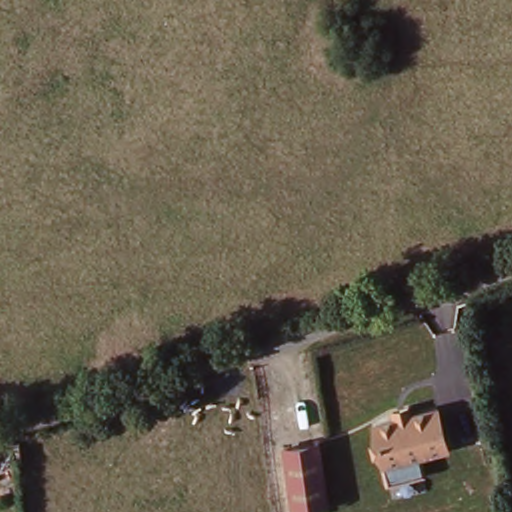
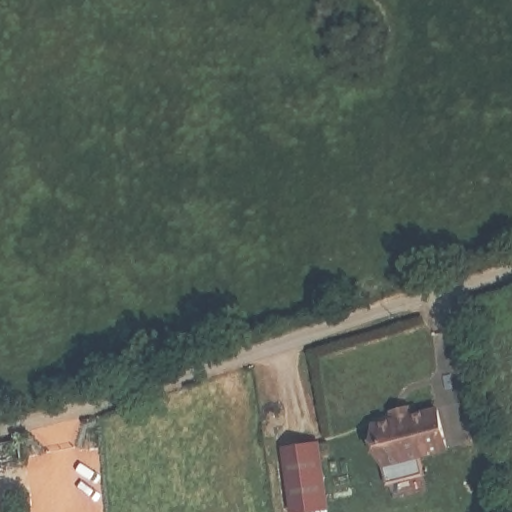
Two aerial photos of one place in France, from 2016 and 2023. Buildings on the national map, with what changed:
unchanged [(437,406),(452,443),(386,465),(370,426),(437,406)]
unchanged [(304,512),(291,512),(282,449),(321,441),(330,506),(304,512)]

